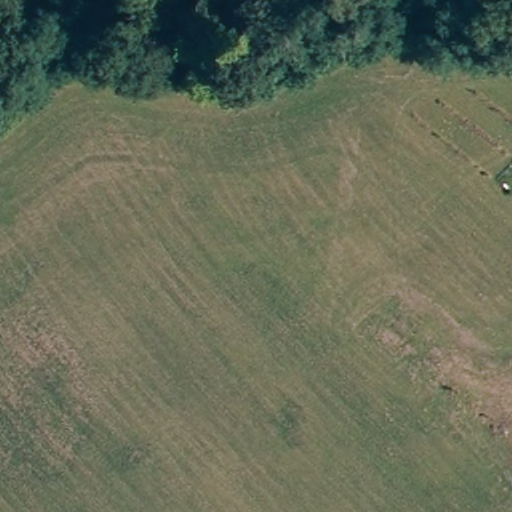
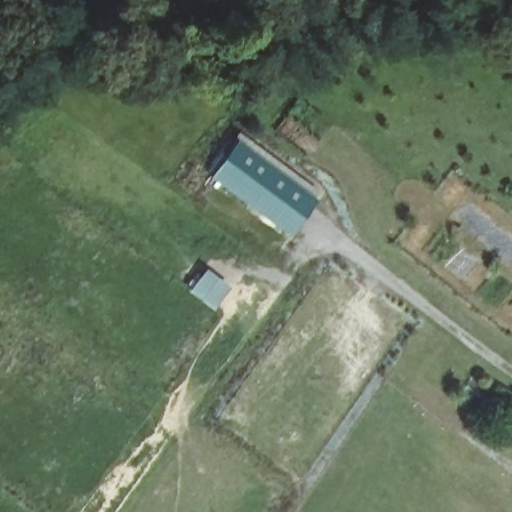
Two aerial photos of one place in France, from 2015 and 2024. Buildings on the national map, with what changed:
new [(235,141),(319,201),(291,238),(209,178),(235,141)]

